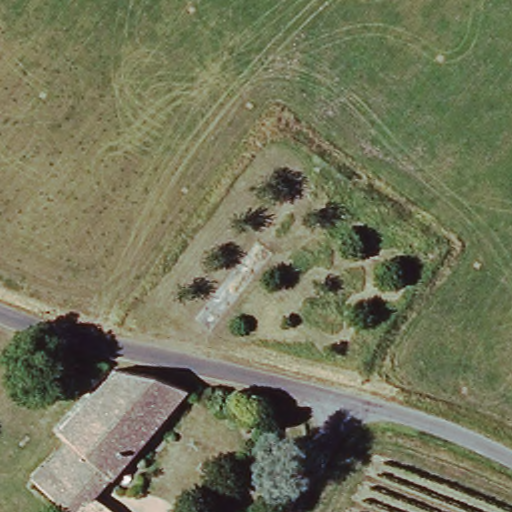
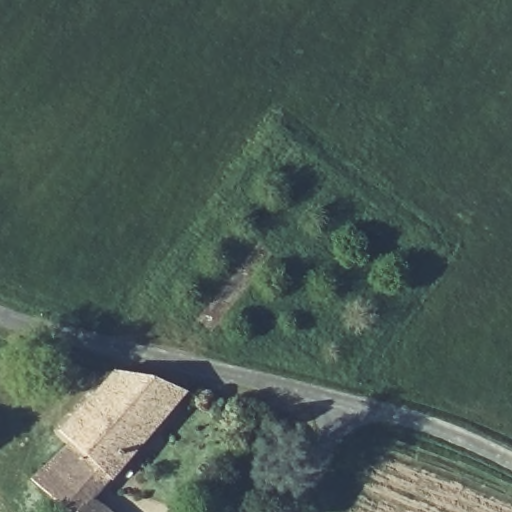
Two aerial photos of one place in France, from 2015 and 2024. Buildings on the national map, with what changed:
unchanged [(52,512),(21,480),(61,445),(36,416),(78,374),(181,392),(84,495),(102,512),(52,512)]

